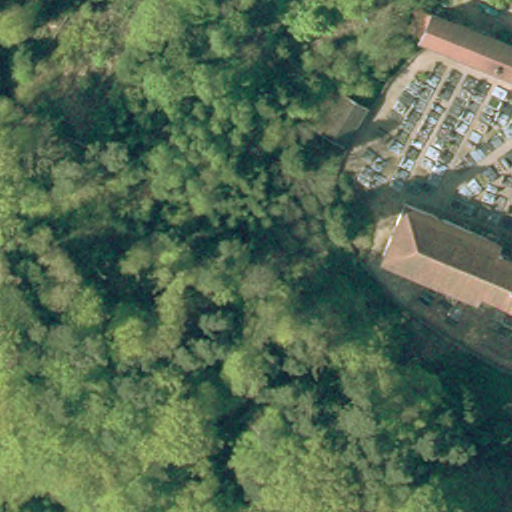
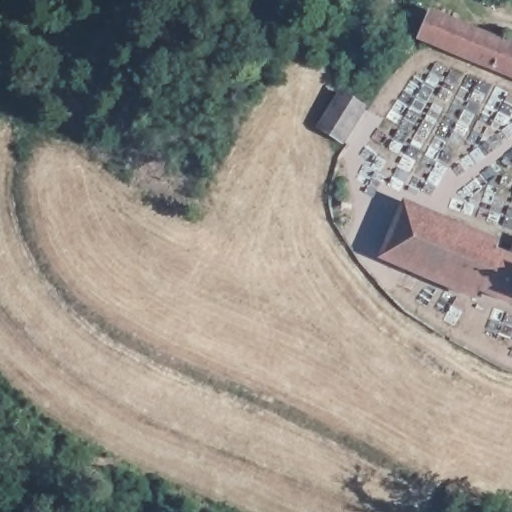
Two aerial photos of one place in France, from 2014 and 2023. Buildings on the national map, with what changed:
unchanged [(415,29),(425,10),(448,20),(512,45),(512,73),(455,46),(438,39),(415,29)]
unchanged [(367,106),(347,143),(323,130),(344,93),(367,106)]
unchanged [(495,245),(492,251),(508,258),(512,252),(512,303),(485,290),(480,301),(385,255),(408,206),(495,245)]

